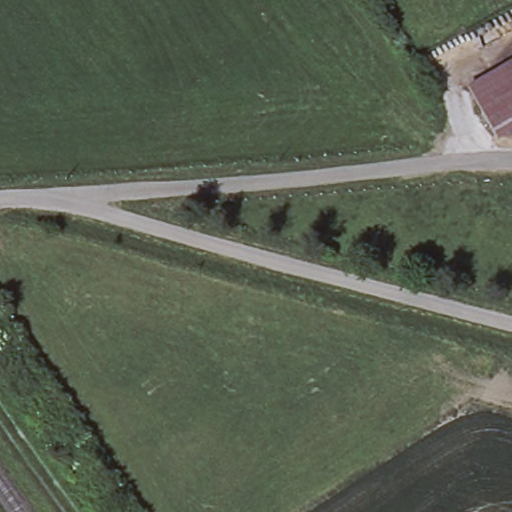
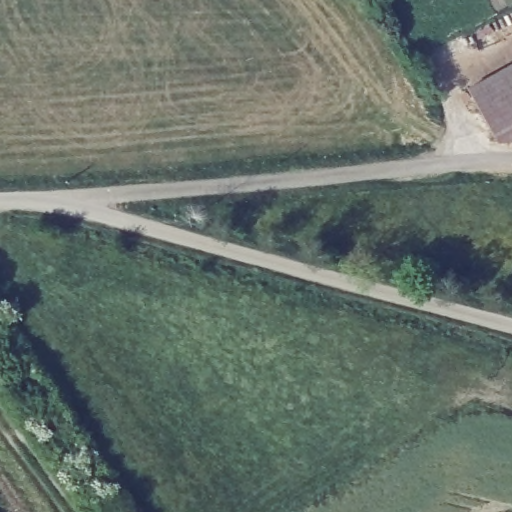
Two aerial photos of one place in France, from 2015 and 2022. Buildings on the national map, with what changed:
unchanged [(500,140),(472,91),(512,67),(512,141),(502,142),(500,140)]

